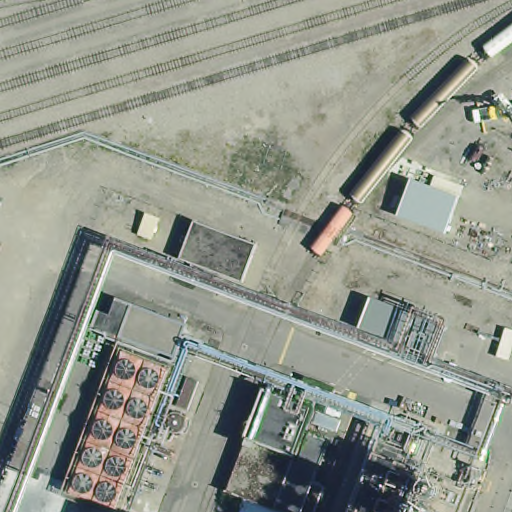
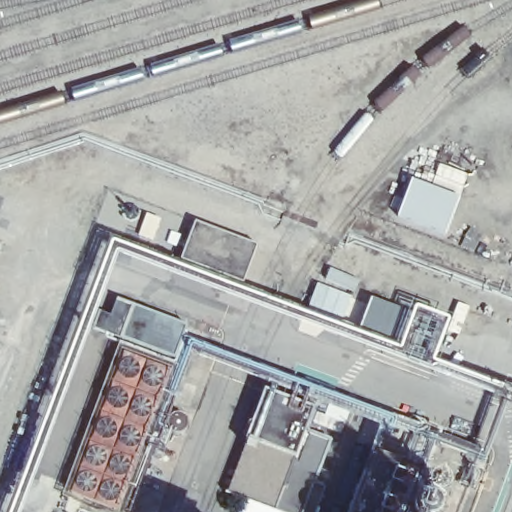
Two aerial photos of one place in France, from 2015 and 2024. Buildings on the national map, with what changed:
unchanged [(447,233),(397,217),(411,180),(462,198),(447,233)]
unchanged [(245,284),(182,259),(197,222),(261,245),(245,284)]
unchanged [(358,328),(369,297),(447,326),(435,357),(358,328)]
unchanged [(185,331),(172,364),(127,347),(139,314),(185,331)]
unchanged [(231,495),(270,390),(316,407),(307,433),(277,512),(231,495)]
unchanged [(332,443),(306,512),(277,512),(307,433),(332,443)]
unchanged [(393,482),(400,464),(428,474),(414,512),(359,512),(372,476),(393,482)]

